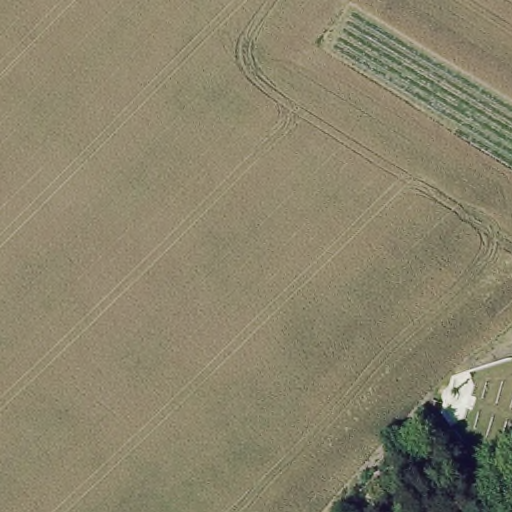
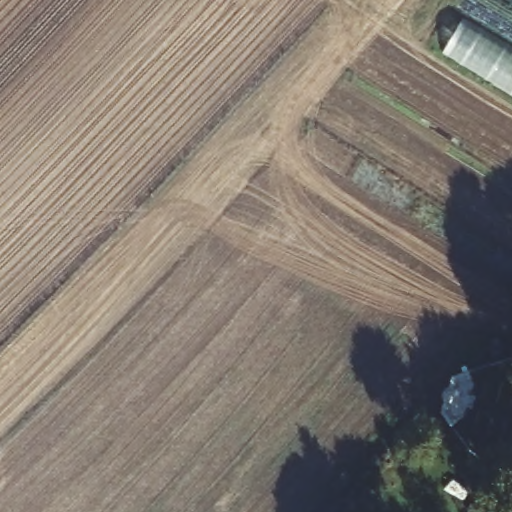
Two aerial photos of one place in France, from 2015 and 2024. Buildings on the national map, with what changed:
new [(442,55),(464,17),(512,47),(512,96),(442,55)]
new [(430,456),(405,456),(405,431),(430,431),(430,456)]

